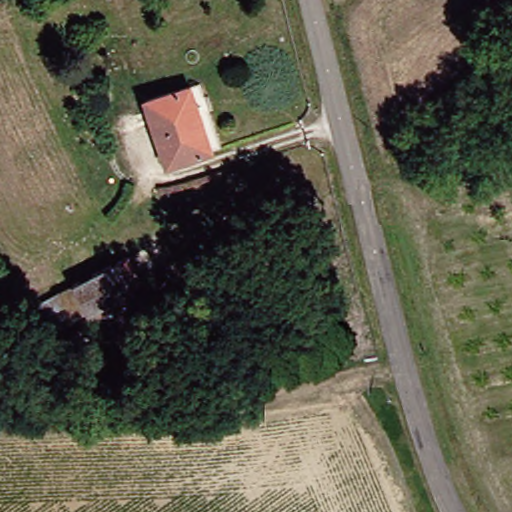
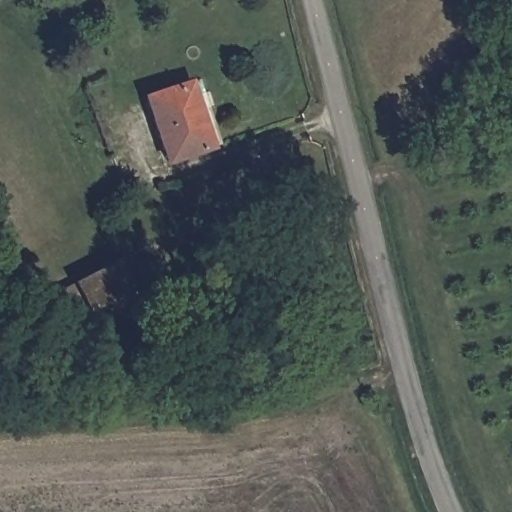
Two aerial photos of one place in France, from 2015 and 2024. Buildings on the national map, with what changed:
unchanged [(191,83),(214,145),(157,166),(135,105),(191,83)]
unchanged [(117,264),(130,286),(87,311),(73,288),(117,264)]
unchanged [(56,314),(61,327),(31,341),(25,328),(56,314)]

